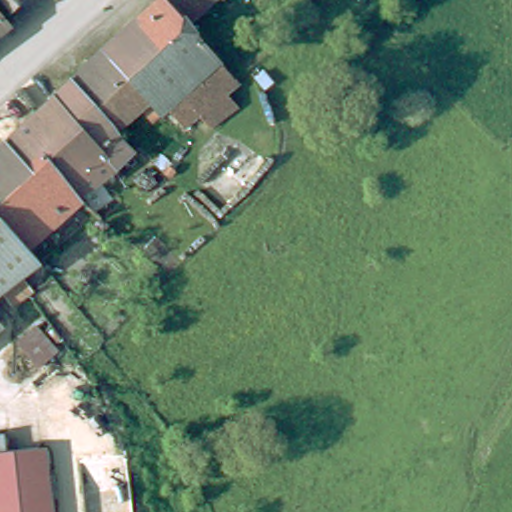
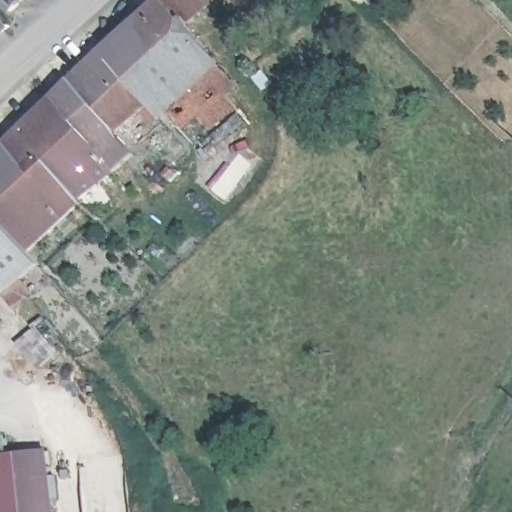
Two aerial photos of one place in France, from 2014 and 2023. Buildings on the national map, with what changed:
unchanged [(13,6),(7,0),(20,0),(13,6)]
unchanged [(224,79),(238,94),(213,116),(198,101),(186,111),(173,96),(161,106),(159,103),(103,41),(147,0),(197,0),(186,10),(224,52),(238,67),(224,79)]
unchanged [(11,20),(0,29),(0,6),(8,16),(11,20)]
unchanged [(103,41),(159,103),(153,110),(142,98),(119,119),(72,70),(103,41)]
unchanged [(121,157),(58,87),(55,86),(72,70),(119,119),(140,140),(121,157)]
unchanged [(121,157),(85,188),(68,170),(42,144),(28,157),(27,156),(25,154),(6,136),(58,87),(121,157)]
unchanged [(9,285),(0,294),(0,142),(6,136),(25,154),(27,156),(28,157),(42,144),(68,170),(85,188),(21,245),(36,261),(28,269),(39,281),(20,298),(9,285)]
unchanged [(0,319),(0,308),(5,314),(0,319)]
unchanged [(10,444),(53,443),(57,512),(0,512),(0,429),(9,429),(10,444)]

